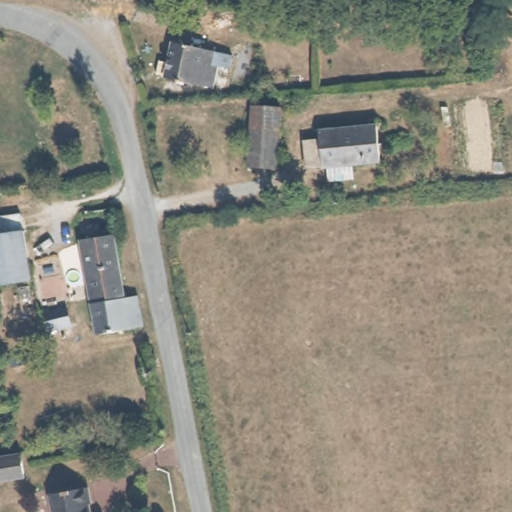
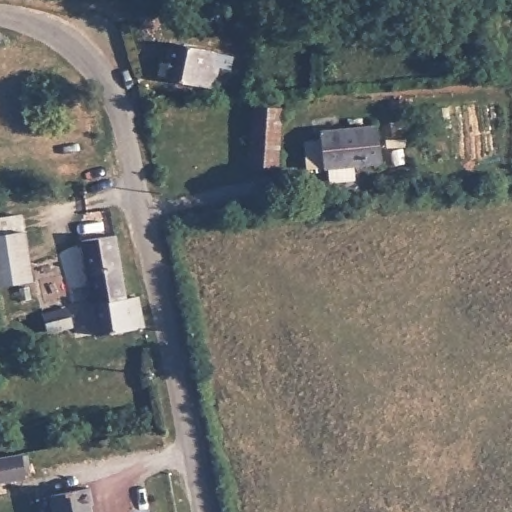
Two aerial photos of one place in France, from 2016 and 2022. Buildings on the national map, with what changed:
unchanged [(477,1),(476,1),(476,2),(476,3),(476,4),(475,4),(475,5),(474,5),(473,5),(472,6),(471,6),(470,6),(468,6),(467,5),(466,5),(466,4),(465,4),(465,3),(465,2),(465,1),(465,0),(477,0),(477,1)]
unchanged [(171,44),(217,53),(213,86),(166,79),(171,44)]
unchanged [(281,108),(275,164),(246,161),(253,104),(281,108)]
unchanged [(326,181),(325,167),(321,167),(321,166),(305,166),(305,144),(323,142),(322,135),(376,134),(376,165),(348,166),(348,180),(326,181)]
unchanged [(27,272),(0,277),(0,228),(21,226),(27,272)]
unchanged [(124,298),(136,297),(142,327),(92,334),(79,241),(114,236),(124,298)]
unchanged [(64,311),(65,327),(41,330),(40,315),(64,311)]
unchanged [(13,476),(0,478),(0,453),(10,451),(13,476)]
unchanged [(85,501),(86,512),(51,512),(49,493),(88,486),(91,500),(85,501)]

